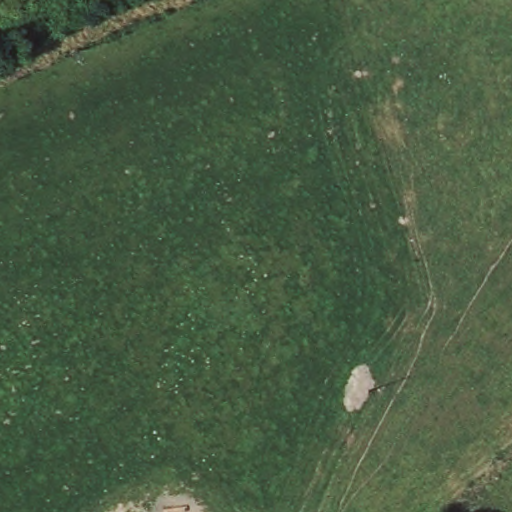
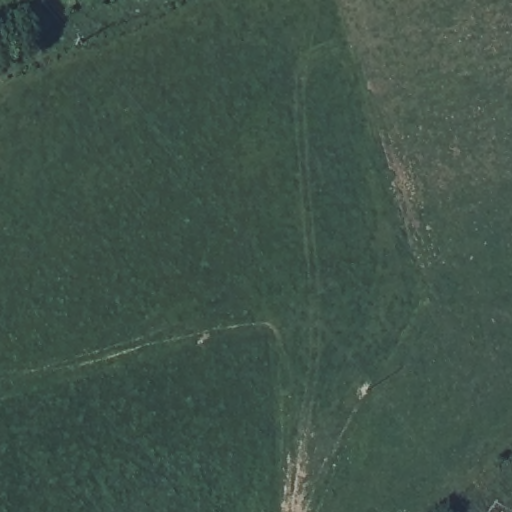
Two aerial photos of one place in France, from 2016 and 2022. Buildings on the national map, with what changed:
[]

